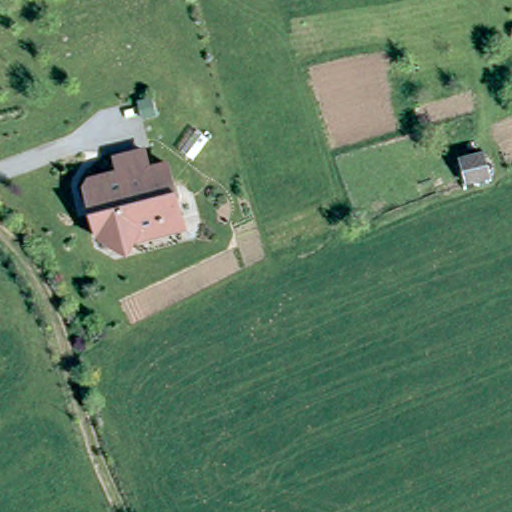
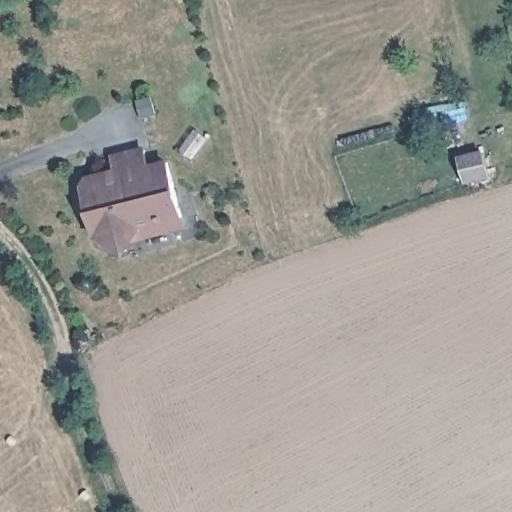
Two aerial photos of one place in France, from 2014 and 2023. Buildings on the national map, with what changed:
unchanged [(147,236),(107,251),(81,184),(122,170),(117,157),(143,149),(150,165),(168,159),(186,211),(190,221),(147,236)]
unchanged [(463,164),(489,155),(496,180),(471,189),(463,164)]

